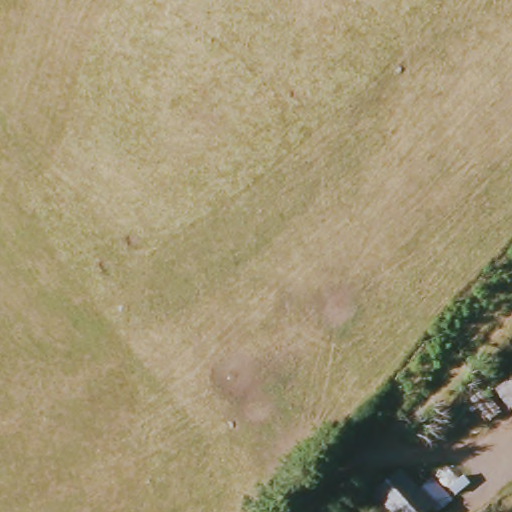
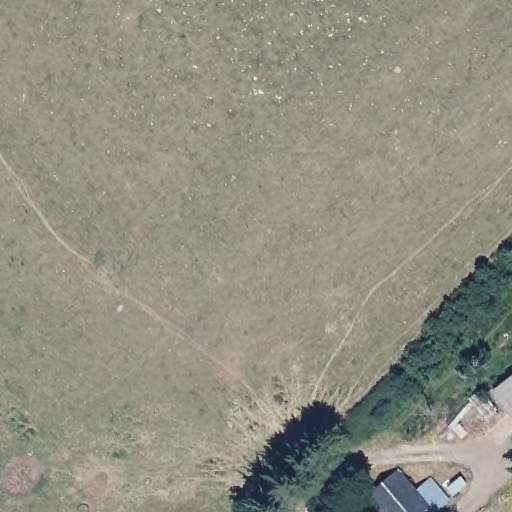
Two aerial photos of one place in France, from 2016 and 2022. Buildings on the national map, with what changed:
unchanged [(496,392),(512,379),(512,412),(496,392)]
unchanged [(436,512),(429,512),(428,511),(428,512),(383,512),(369,495),(396,470),(413,490),(426,479),(447,503),(436,512)]

